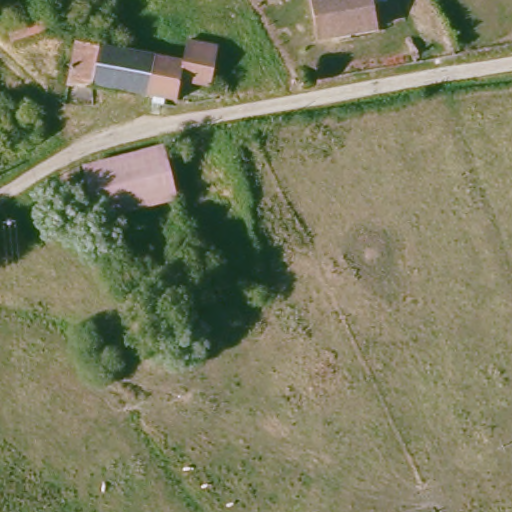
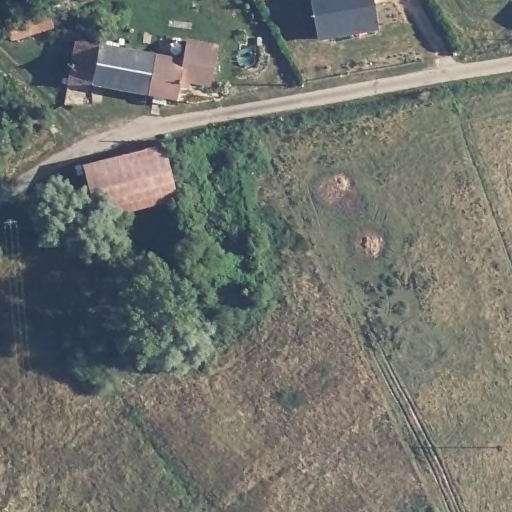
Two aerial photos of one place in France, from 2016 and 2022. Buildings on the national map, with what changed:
unchanged [(320,43),(314,3),(330,0),(374,0),(379,36),(320,43)]
unchanged [(49,13),(55,24),(37,35),(30,21),(49,13)]
unchanged [(186,64),(189,46),(225,55),(215,100),(184,91),(180,105),(145,108),(147,100),(66,84),(77,40),(105,46),(186,64)]
unchanged [(90,164),(169,149),(180,203),(100,219),(90,166),(90,164)]

